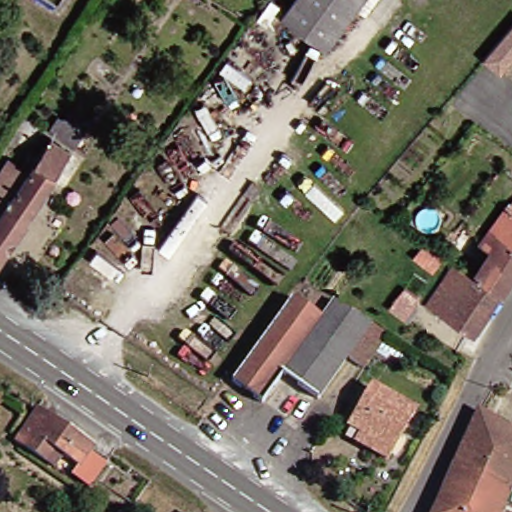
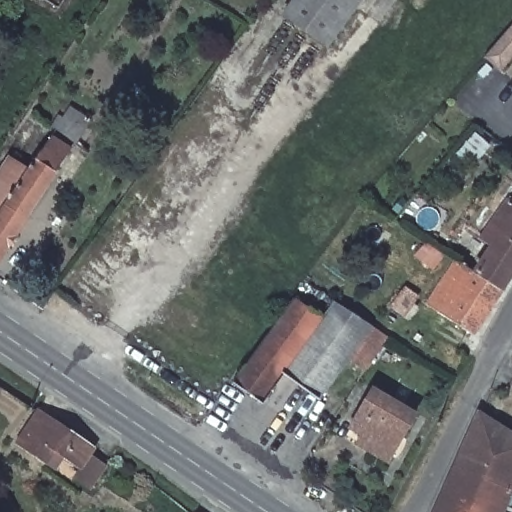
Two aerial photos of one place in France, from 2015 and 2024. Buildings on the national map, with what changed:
unchanged [(294,0),(361,0),(327,47),(284,14),(294,0)]
unchanged [(512,63),(501,76),(482,62),(512,27),(512,63)]
unchanged [(54,125),(60,118),(64,120),(71,109),(90,122),(77,141),(54,125)]
unchanged [(24,221),(26,223),(0,262),(0,172),(9,158),(30,172),(53,138),(71,150),(24,221)]
unchanged [(474,227),(512,173),(512,174),(512,200),(488,237),(474,227)]
unchanged [(479,273),(496,246),(487,239),(488,237),(512,200),(512,285),(509,291),(479,273)]
unchanged [(509,291),(480,336),(432,303),(461,261),(469,267),(479,273),(509,291)]
unchanged [(412,311),(399,302),(417,275),(431,284),(412,311)]
unchanged [(298,299),(328,321),(339,303),(376,326),(393,338),(371,370),(353,358),(324,397),(288,374),(267,404),(237,384),(298,299)]
unchanged [(434,330),(452,342),(474,355),(461,378),(420,352),(434,330)]
unchanged [(415,416),(389,462),(357,443),(362,434),(351,428),(372,391),(415,416)]
unchanged [(95,490),(79,479),(85,469),(69,459),(61,471),(32,452),(20,444),(43,410),(100,449),(95,457),(110,467),(95,490)]
unchanged [(512,488),(508,486),(496,512),(429,512),(432,506),(434,501),(439,490),(446,475),(448,470),(453,459),(462,439),(465,433),(475,410),(512,434),(512,488)]

